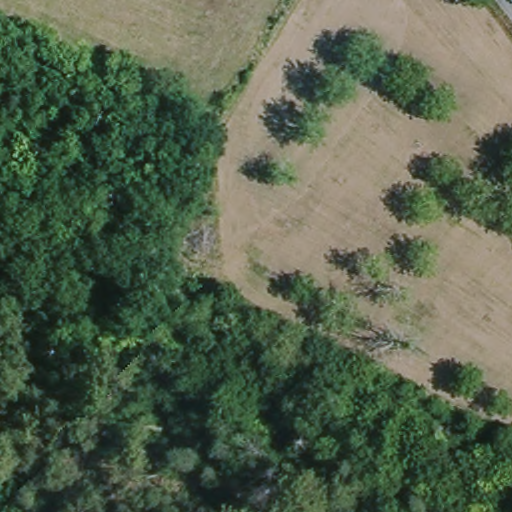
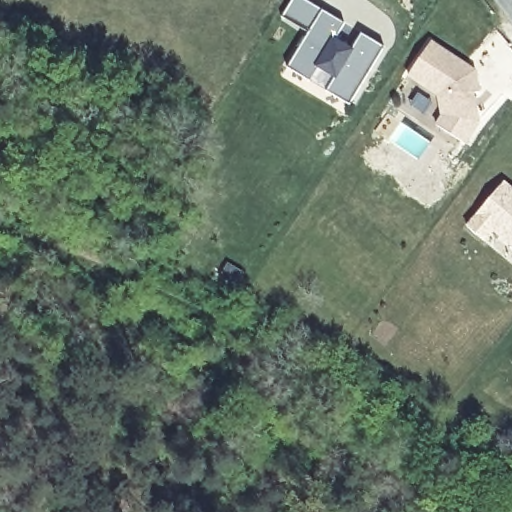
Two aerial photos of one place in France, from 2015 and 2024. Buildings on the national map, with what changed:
new [(287,0),(304,0),(318,9),(341,22),(330,40),(347,49),(357,32),(380,45),(346,104),(322,90),(332,75),(315,65),(306,80),(284,66),(305,31),(278,16),(287,0)]
new [(427,41),(470,71),(475,91),(468,93),(475,121),(461,143),(433,125),(440,115),(435,94),(405,74),(427,41)]
new [(507,184),(512,188),(512,244),(497,231),(488,242),(470,228),(507,184)]

